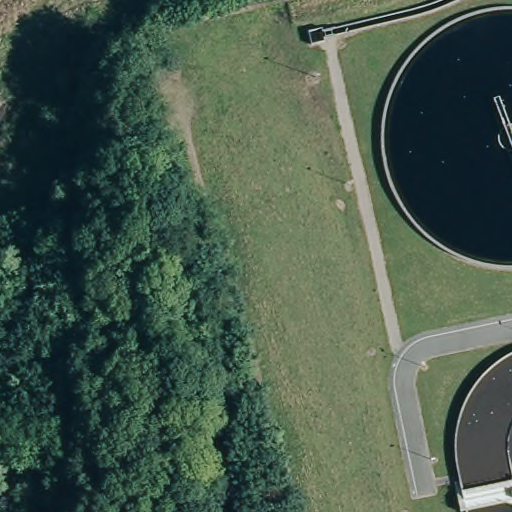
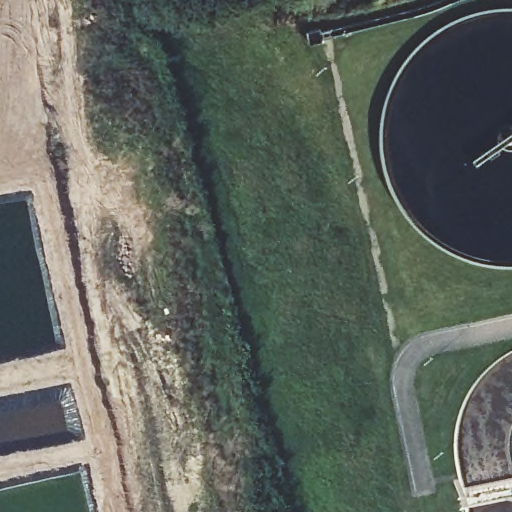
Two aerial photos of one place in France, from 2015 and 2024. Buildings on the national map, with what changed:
unchanged [(308,30),(322,27),(325,41),(312,44),(308,30)]

